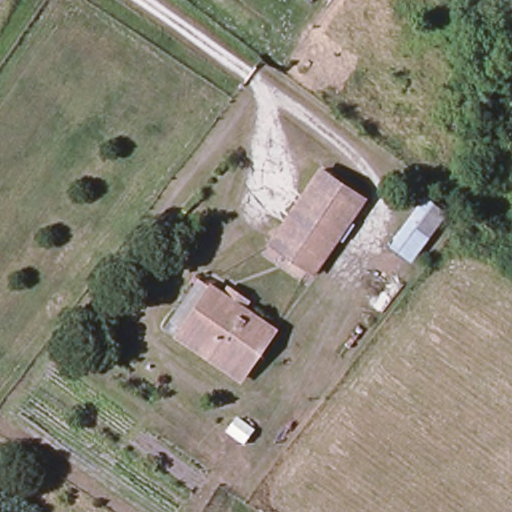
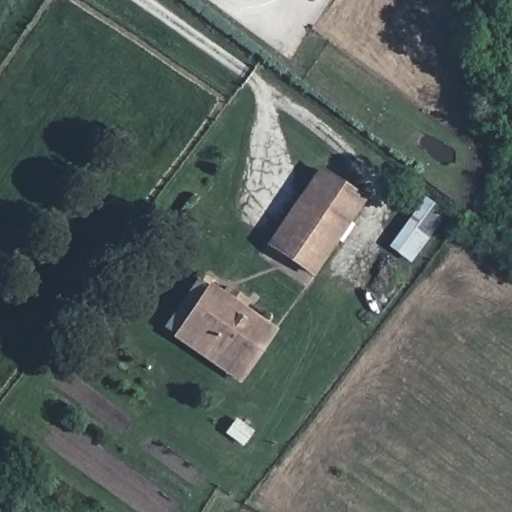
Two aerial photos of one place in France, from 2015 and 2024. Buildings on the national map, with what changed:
unchanged [(312,279),(268,252),(320,177),(362,205),(312,279)]
unchanged [(443,219),(425,245),(412,236),(430,211),(443,219)]
unchanged [(210,276),(278,322),(251,364),(193,321),(209,299),(200,292),(210,276)]
unchanged [(209,299),(193,321),(251,364),(245,374),(176,327),(200,292),(209,299)]

